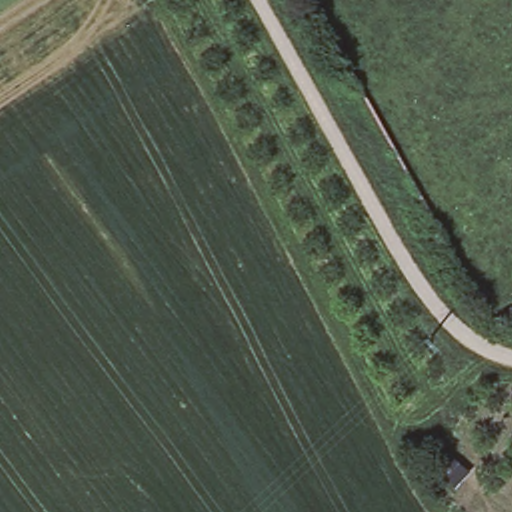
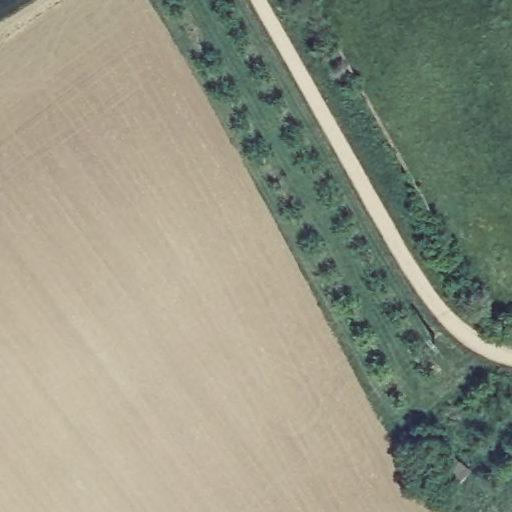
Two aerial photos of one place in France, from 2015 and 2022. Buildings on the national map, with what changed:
unchanged [(450,449),(471,467),(455,487),(433,469),(450,449)]

